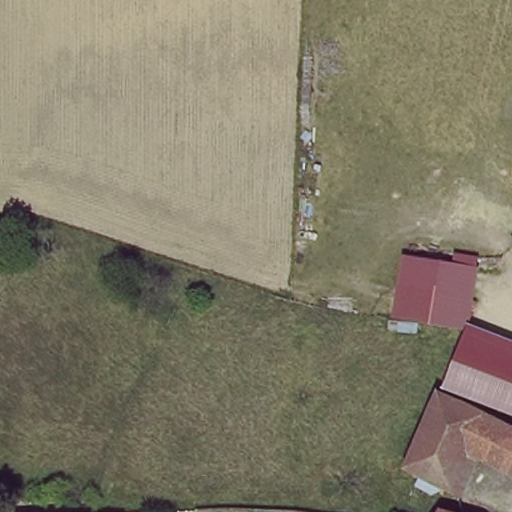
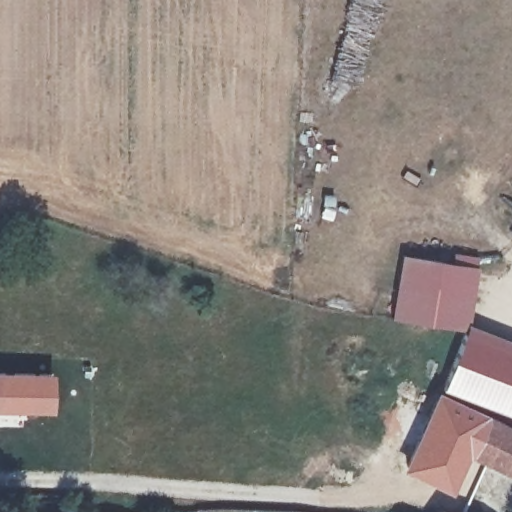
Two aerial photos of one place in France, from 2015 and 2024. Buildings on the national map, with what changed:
unchanged [(467,327),(388,313),(393,284),(398,255),(476,268),(472,297),(467,327)]
unchanged [(512,418),(442,388),(467,327),(512,342),(512,418)]
new [(52,370),(52,410),(0,410),(0,369),(52,370)]
unchanged [(453,498),(421,485),(426,473),(416,468),(446,395),(512,425),(512,465),(475,449),(453,498)]
unchanged [(431,512),(435,506),(452,512),(431,512)]

